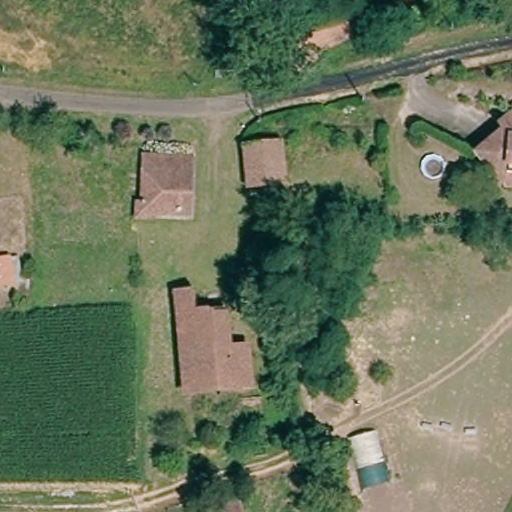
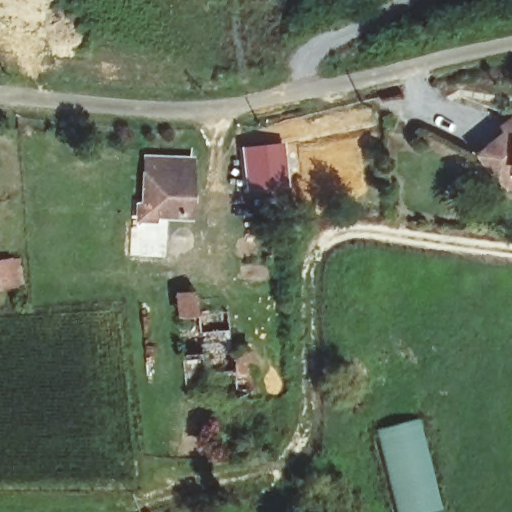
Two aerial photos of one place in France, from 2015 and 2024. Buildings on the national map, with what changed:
unchanged [(382,132),(365,130),(365,116),(382,116),(382,132)]
unchanged [(497,185),(481,165),(479,162),(497,148),(508,141),(501,134),(512,124),(512,178),(507,178),(497,185)]
unchanged [(283,149),(279,190),(246,188),(249,146),(283,149)]
unchanged [(192,166),(189,223),(175,223),(142,221),(148,163),(192,166)]
unchanged [(219,297),(225,355),(241,353),(244,393),(185,401),(172,302),(219,297)]
new [(441,511),(435,512),(395,512),(373,431),(419,419),(441,511)]
demolished [(347,442),(378,433),(392,484),(365,496),(347,442)]

